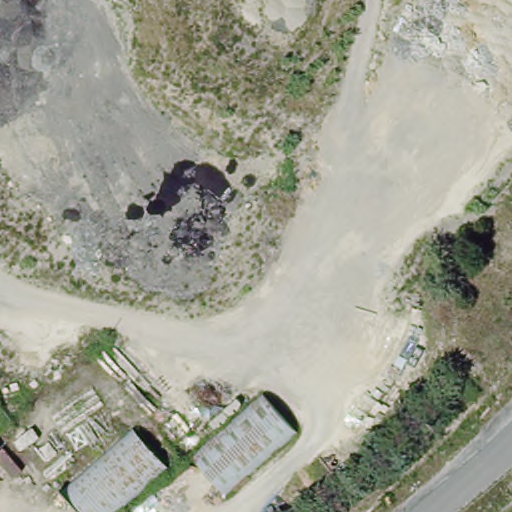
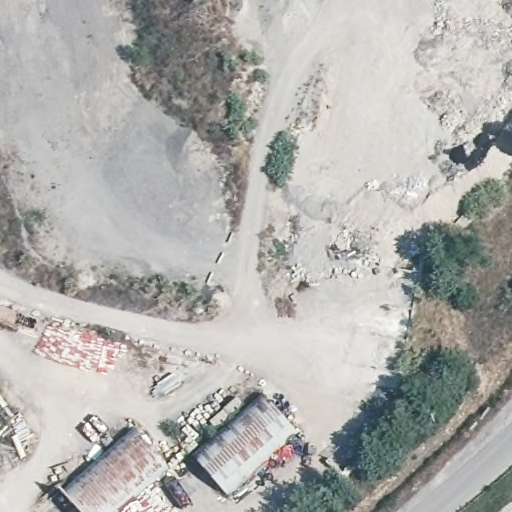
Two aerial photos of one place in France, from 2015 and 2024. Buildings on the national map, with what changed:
unchanged [(303,436),(232,499),(196,459),(266,398),(303,436)]
unchanged [(125,512),(84,512),(65,491),(136,429),(173,468),(125,512)]

